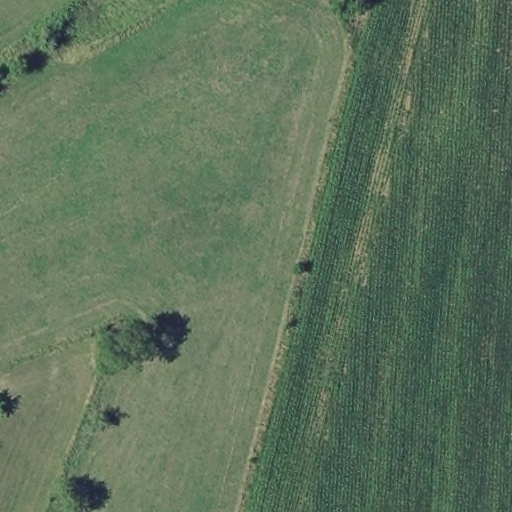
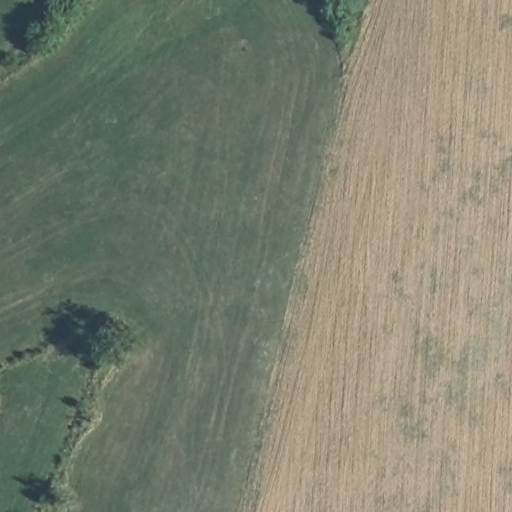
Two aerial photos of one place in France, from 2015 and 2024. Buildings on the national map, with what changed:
[]

